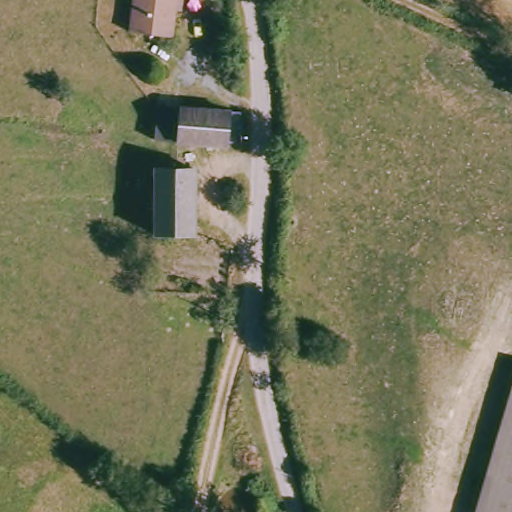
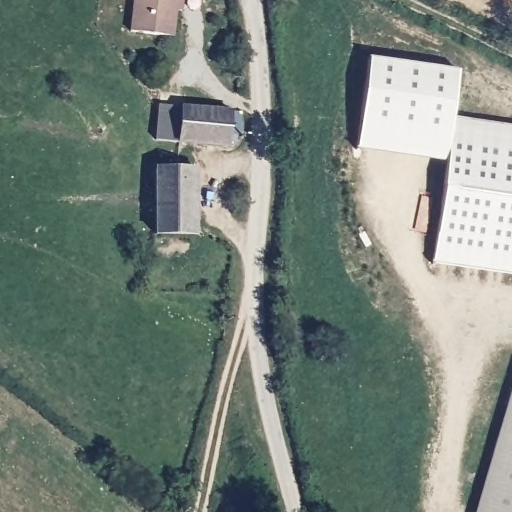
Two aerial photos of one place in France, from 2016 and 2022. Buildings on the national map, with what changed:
unchanged [(133,32),(136,0),(181,0),(177,37),(133,32)]
new [(367,60),(456,72),(450,119),(512,128),(512,274),(432,263),(445,162),(355,151),(367,60)]
unchanged [(255,135),(244,135),(242,150),(170,143),(171,107),(192,109),(255,114),(255,135)]
unchanged [(164,232),(165,164),(202,167),(201,232),(164,232)]
unchanged [(512,379),(512,418),(503,415),(512,379)]
unchanged [(503,415),(512,418),(512,512),(478,512),(503,415)]

